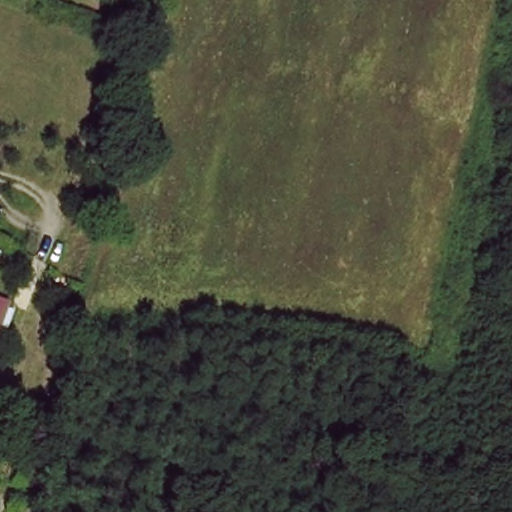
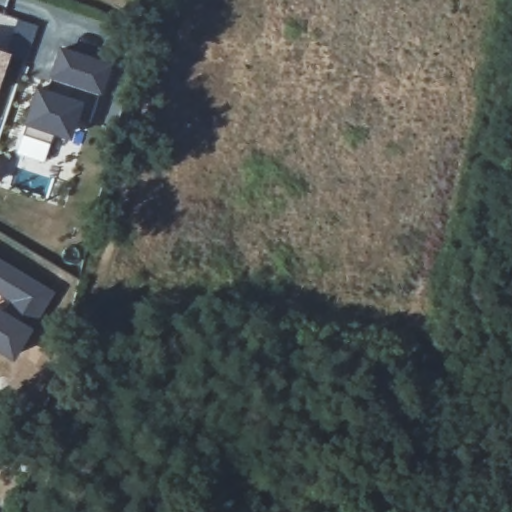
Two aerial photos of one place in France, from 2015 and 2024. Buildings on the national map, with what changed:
new [(113,62),(95,119),(80,115),(76,127),(62,123),(56,141),(27,132),(42,87),(52,90),(57,73),(65,47),(113,62)]
new [(11,53),(0,86),(0,49),(11,53)]
new [(11,161),(6,179),(0,176),(0,157),(11,161)]
new [(5,312),(10,302),(0,296),(0,260),(55,294),(31,329),(12,360),(0,353),(0,309),(5,312)]

